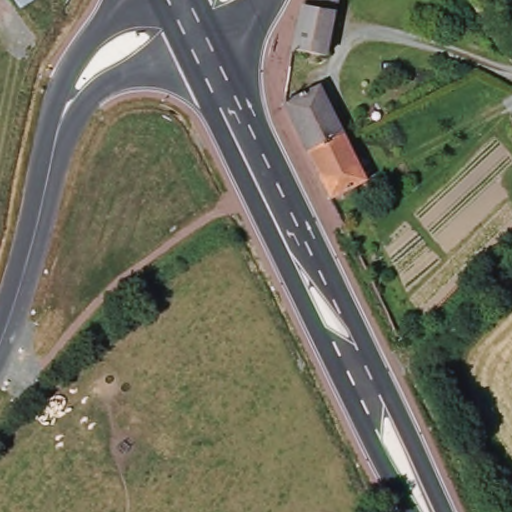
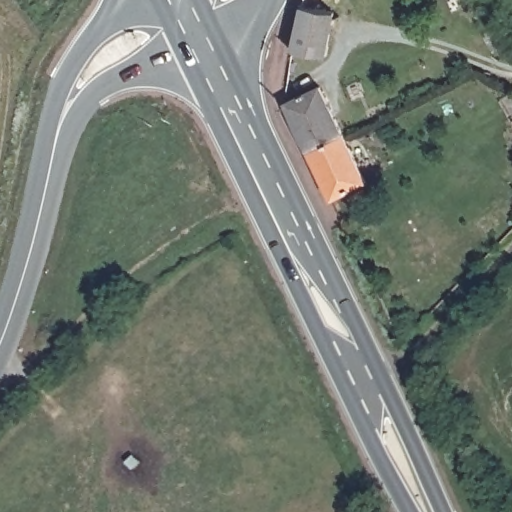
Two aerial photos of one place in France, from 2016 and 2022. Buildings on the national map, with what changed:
unchanged [(450,13),(444,0),(469,0),(470,3),(450,13)]
unchanged [(303,4),(340,11),(331,52),(293,44),(303,4)]
unchanged [(320,80),(344,129),(307,146),(283,96),(320,80)]
unchanged [(344,129),(367,178),(331,195),(307,146),(344,129)]

